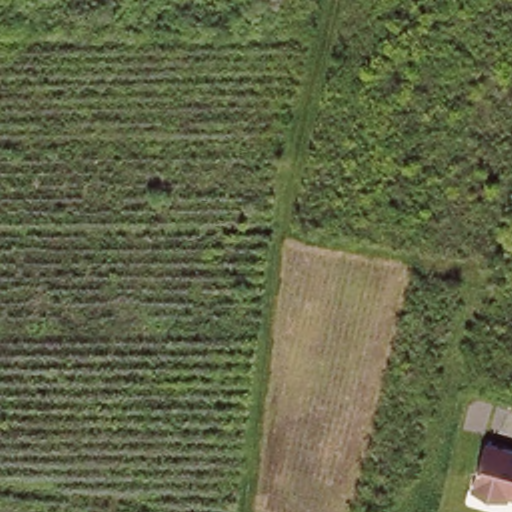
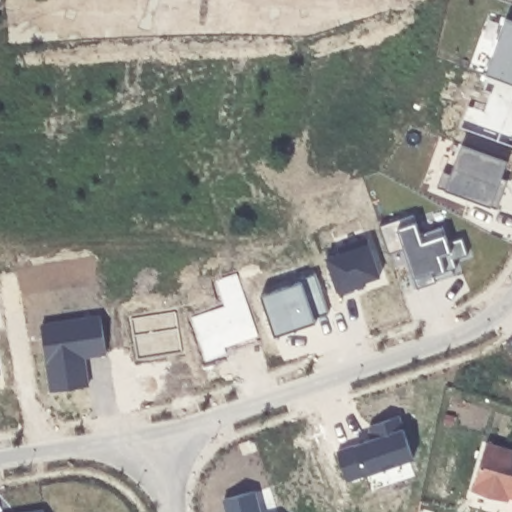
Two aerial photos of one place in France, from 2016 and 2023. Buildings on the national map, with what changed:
new [(485,76),(505,20),(512,22),(512,85),(485,76)]
new [(503,194),(497,210),(436,188),(442,172),(450,175),(461,146),(507,163),(501,179),(507,181),(503,194)]
new [(435,281),(436,284),(416,290),(403,250),(387,255),(378,228),(413,216),(420,235),(442,227),(447,244),(462,239),(467,256),(453,261),(456,269),(451,271),(453,275),(435,281)]
new [(340,254),(338,249),(366,239),(380,278),(365,283),(365,286),(338,295),(326,259),(340,254)]
new [(300,283),(300,280),(315,274),(328,314),(314,319),(316,323),(274,337),(260,296),(300,283)]
new [(100,317),(105,354),(89,357),(88,352),(82,353),(87,386),(51,392),(40,326),(100,317)]
new [(373,440),(368,427),(398,417),(412,459),(346,482),(336,453),(373,440)]
unchanged [(512,449),(512,497),(510,496),(508,500),(473,490),(487,442),(512,449)]
new [(254,492),(259,512),(226,512),(223,500),(254,492)]
new [(43,512),(33,512),(42,510),(43,512)]

